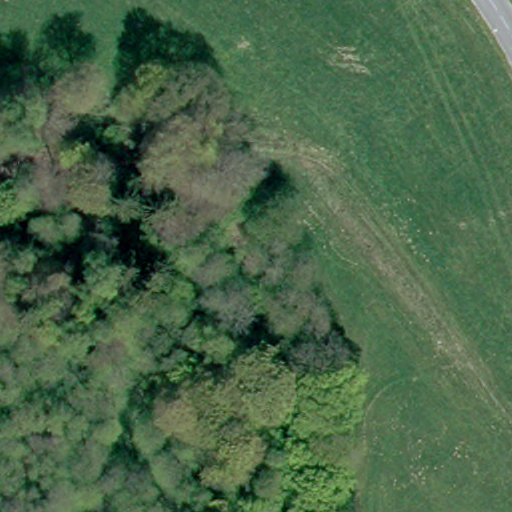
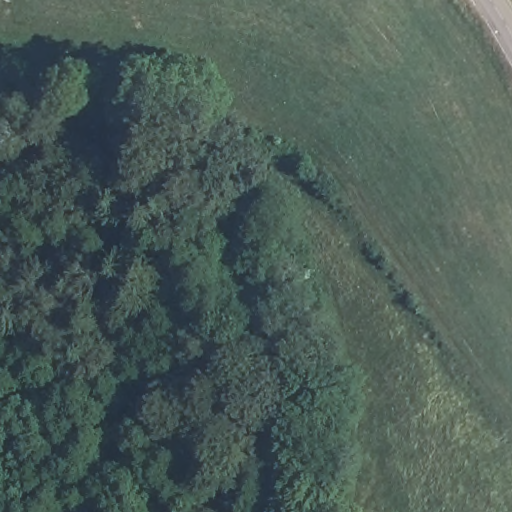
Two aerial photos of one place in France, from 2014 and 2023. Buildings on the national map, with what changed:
unchanged [(305,355),(295,331),(315,324),(323,347),(305,355)]
unchanged [(313,379),(307,362),(321,357),(327,373),(313,379)]

